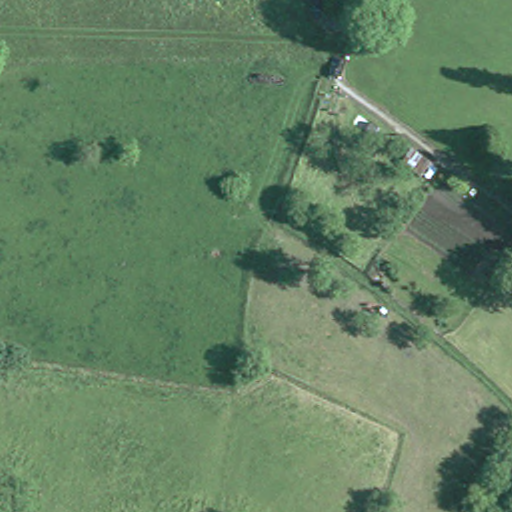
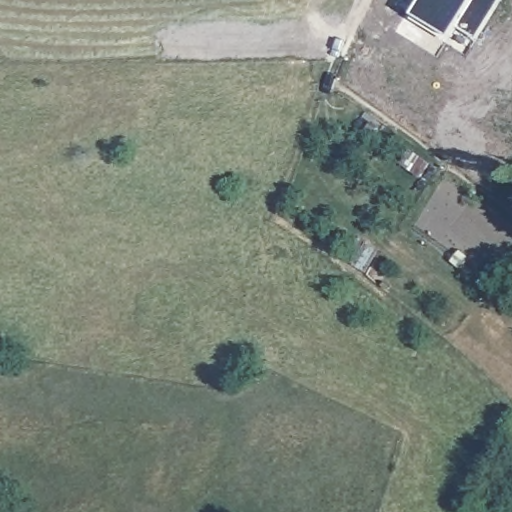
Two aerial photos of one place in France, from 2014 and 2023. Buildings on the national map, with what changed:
new [(450,39),(413,16),(395,5),(397,0),(500,0),(476,40),(470,50),(450,39)]

